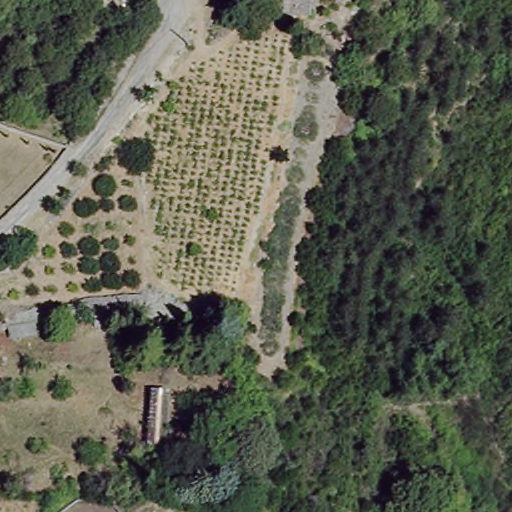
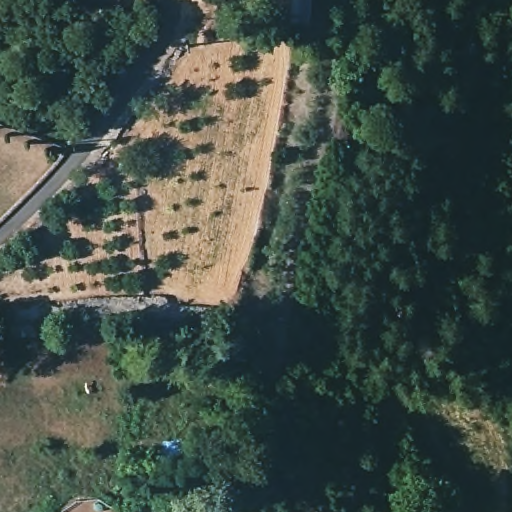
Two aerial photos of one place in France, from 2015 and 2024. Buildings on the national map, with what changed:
unchanged [(315,18),(278,20),(276,3),(276,0),(314,0),(315,18)]
unchanged [(153,453),(150,403),(174,403),(176,452),(153,453)]
unchanged [(460,512),(455,492),(480,487),(485,511),(481,512),(460,512)]

